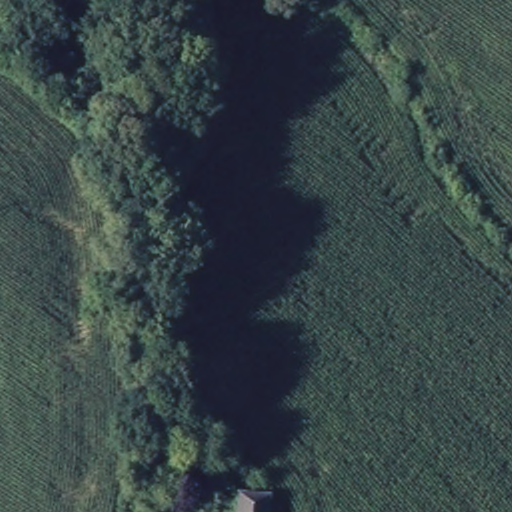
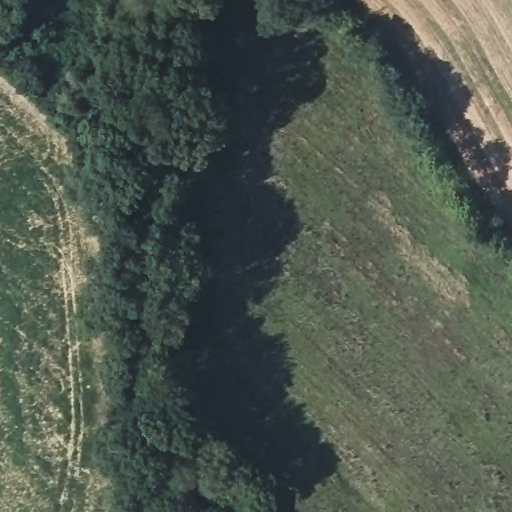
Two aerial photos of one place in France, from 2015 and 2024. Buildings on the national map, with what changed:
unchanged [(272,494),(273,512),(227,512),(229,494),(272,494)]

